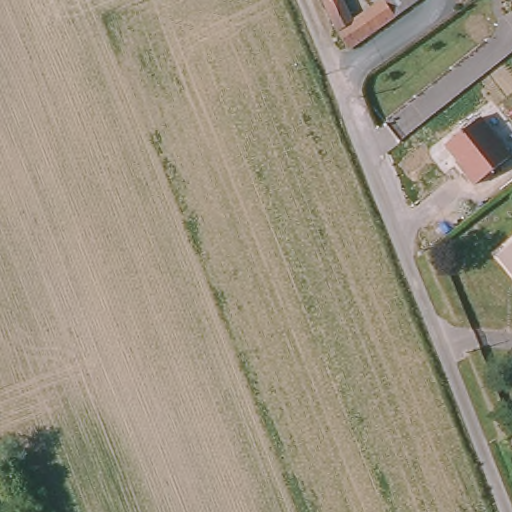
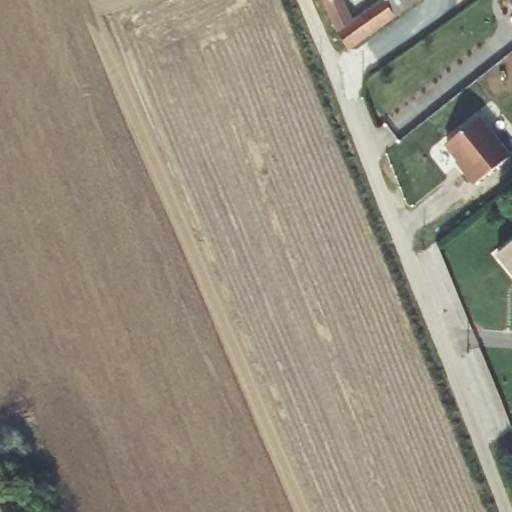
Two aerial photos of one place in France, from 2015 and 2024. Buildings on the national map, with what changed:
unchanged [(345,0),(355,21),(386,1),(398,19),(350,56),(324,0),(345,0)]
unchanged [(385,0),(422,0),(398,19),(386,1),(385,0)]
unchanged [(483,115),(512,153),(512,156),(474,184),(445,145),(483,115)]
unchanged [(512,245),(512,281),(494,260),(512,245)]

